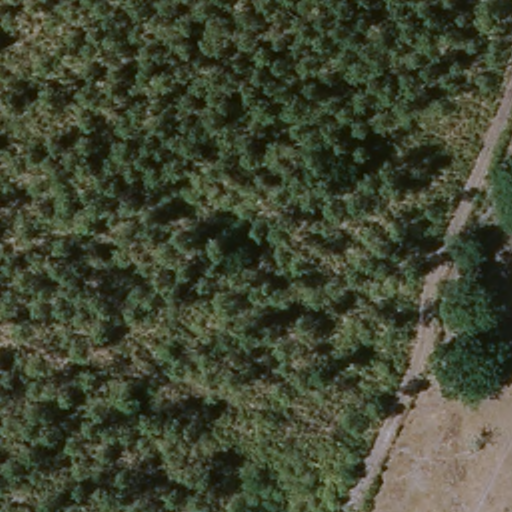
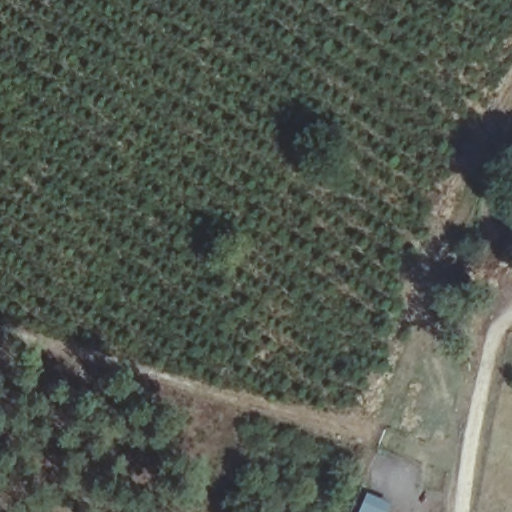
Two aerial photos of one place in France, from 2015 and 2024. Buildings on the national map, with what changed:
new [(393,504),(390,512),(362,512),(368,498),(374,500),(375,497),(393,504)]

